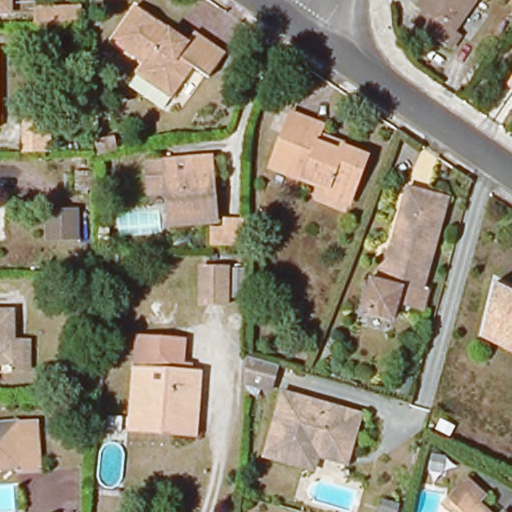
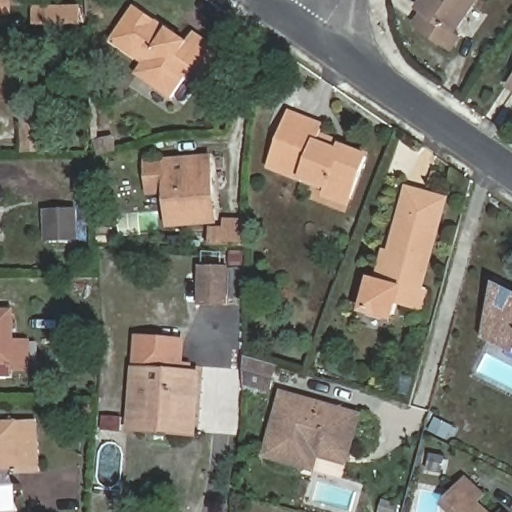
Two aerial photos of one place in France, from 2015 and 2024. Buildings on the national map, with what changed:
unchanged [(0,12),(0,0),(7,0),(7,12),(0,12)]
unchanged [(462,36),(469,41),(461,53),(425,29),(432,17),(426,12),(434,0),(486,0),(462,36)]
unchanged [(35,6),(83,5),(86,29),(37,30),(35,6)]
unchanged [(189,45),(197,32),(228,54),(211,80),(195,69),(174,102),(138,79),(146,68),(112,45),(136,9),(189,45)]
unchanged [(352,202),(335,195),(336,192),(273,170),(292,119),(326,131),(321,146),(336,152),(343,155),(367,164),(352,202)]
unchanged [(26,130),(50,129),(50,161),(44,161),(27,161),(26,130)]
unchanged [(222,219),(248,221),(248,251),(210,250),(205,230),(150,235),(143,163),(212,155),(222,219)]
unchanged [(403,299),(397,318),(369,310),(377,281),(378,282),(387,250),(396,253),(413,189),(450,199),(424,295),(421,304),(403,299)]
unchanged [(75,213),(75,240),(46,241),(46,214),(75,213)]
unchanged [(236,303),(206,302),(206,267),(237,268),(236,303)]
unchanged [(512,290),(512,344),(483,330),(496,282),(512,290)]
unchanged [(12,342),(28,342),(29,370),(10,371),(10,363),(0,364),(0,312),(11,311),(12,342)]
unchanged [(512,344),(512,362),(479,346),(483,330),(512,344)]
unchanged [(128,430),(129,420),(132,369),(135,337),(180,340),(178,372),(195,373),(191,425),(191,435),(128,430)]
unchanged [(276,370),(268,393),(243,386),(244,360),(276,370)]
unchanged [(308,456),(305,470),(295,467),(257,456),(275,393),(366,419),(356,457),(352,468),(308,456)]
unchanged [(452,425),(449,439),(438,436),(442,422),(452,425)]
unchanged [(43,425),(48,474),(32,475),(31,470),(0,473),(0,428),(27,426),(43,425)]
unchanged [(483,502),(477,510),(480,512),(446,512),(466,488),(483,502)]
unchanged [(391,512),(379,512),(380,509),(391,512)]

